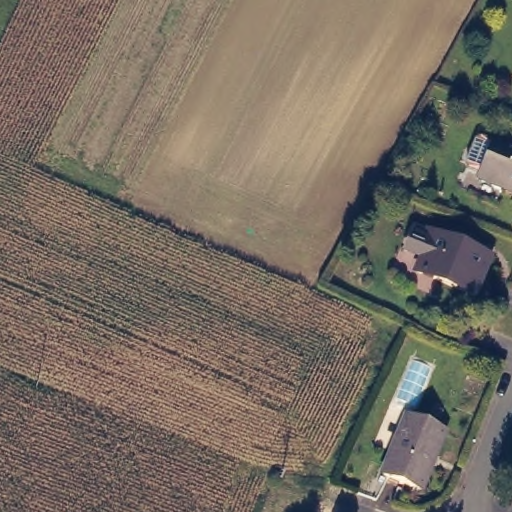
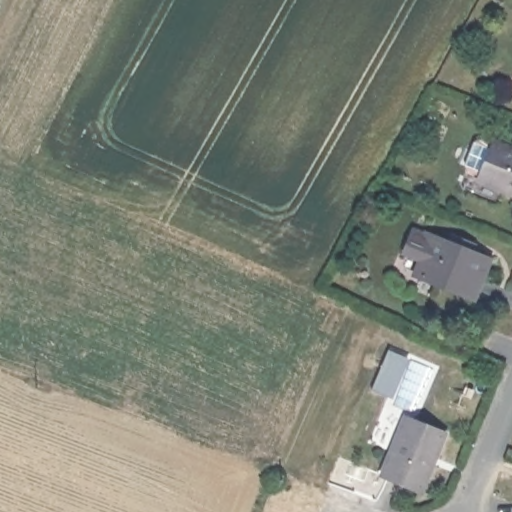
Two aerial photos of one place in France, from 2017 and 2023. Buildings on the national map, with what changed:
unchanged [(494,136),(512,143),(512,186),(480,175),(494,136)]
unchanged [(488,251),(473,289),(416,266),(431,228),(488,251)]
unchanged [(440,428),(415,485),(378,469),(402,412),(440,428)]

